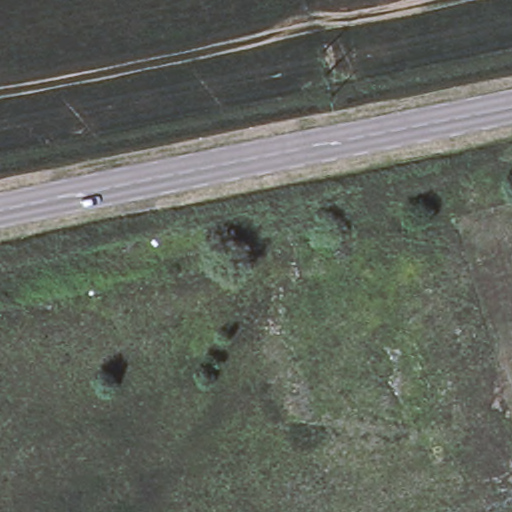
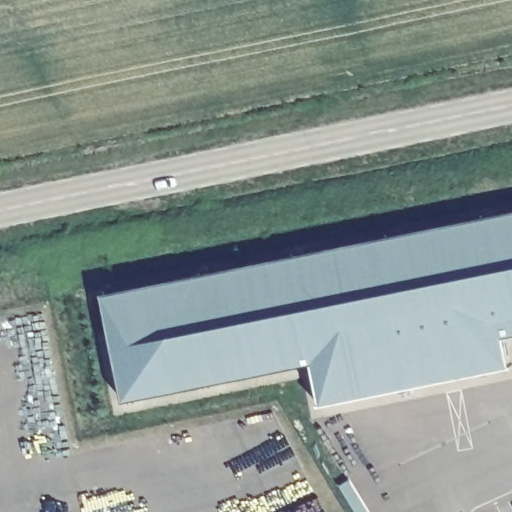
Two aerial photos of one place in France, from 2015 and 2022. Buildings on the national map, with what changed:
new [(511,367),(321,404),(313,363),(124,400),(103,293),(512,211),(512,332),(504,334),(511,367)]

